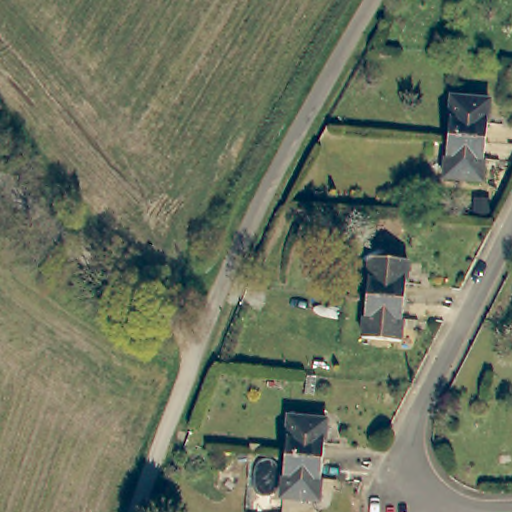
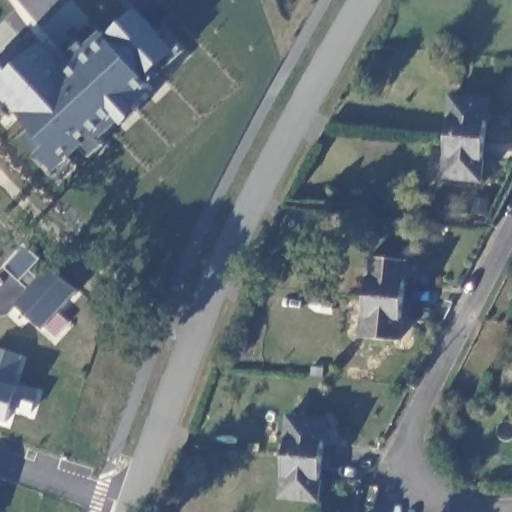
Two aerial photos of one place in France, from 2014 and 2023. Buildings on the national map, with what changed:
new [(163,75),(152,84),(156,89),(135,107),(140,113),(124,126),(120,122),(100,140),(103,145),(90,157),(82,149),(56,174),(24,141),(36,132),(0,95),(0,63),(18,46),(28,56),(42,40),(63,67),(135,7),(175,51),(157,68),(163,75)]
unchanged [(448,137),(451,97),(488,100),(485,140),(448,137)]
unchanged [(481,181),(444,178),(448,137),(485,140),(481,181)]
new [(24,243),(41,259),(34,267),(43,275),(52,266),(79,290),(43,328),(17,304),(28,290),(5,268),(24,243)]
unchanged [(366,297),(370,257),(407,261),(403,301),(366,297)]
unchanged [(399,340),(362,337),(366,297),(403,301),(399,340)]
new [(38,393),(30,415),(11,409),(8,422),(0,420),(0,347),(23,354),(16,386),(38,393)]
unchanged [(283,457),(287,416),(327,420),(323,461),(283,457)]
unchanged [(319,501),(279,497),(283,457),(323,461),(319,501)]

